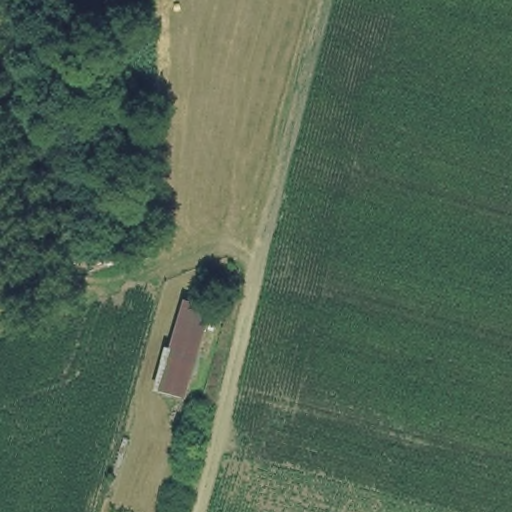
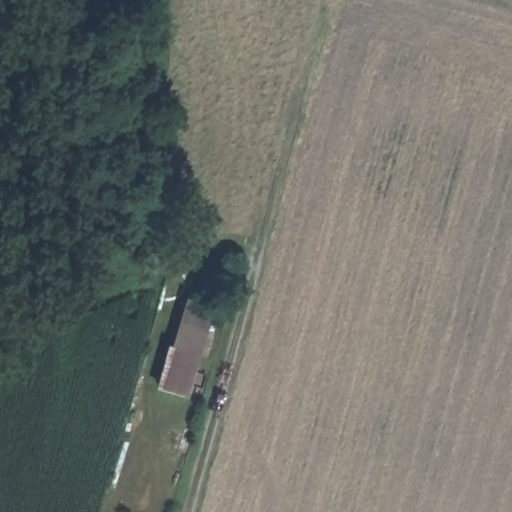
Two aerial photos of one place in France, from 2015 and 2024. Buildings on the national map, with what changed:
unchanged [(186,299),(216,312),(186,404),(158,395),(186,299)]

